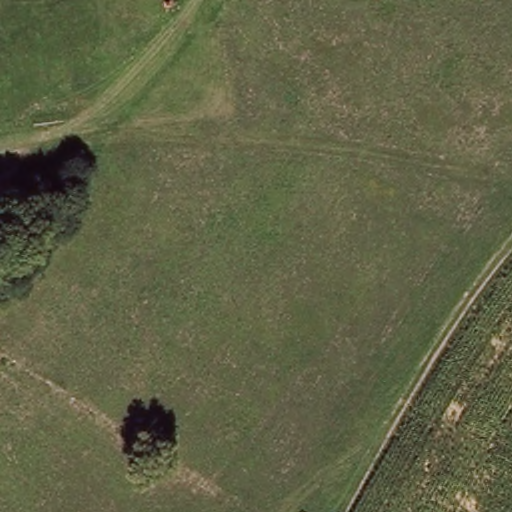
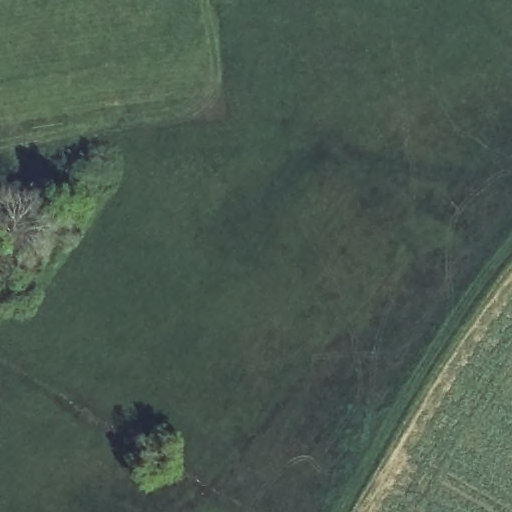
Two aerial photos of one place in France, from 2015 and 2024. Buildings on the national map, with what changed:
[]

